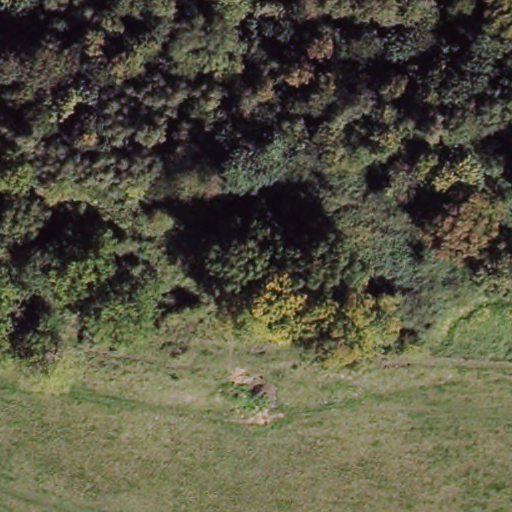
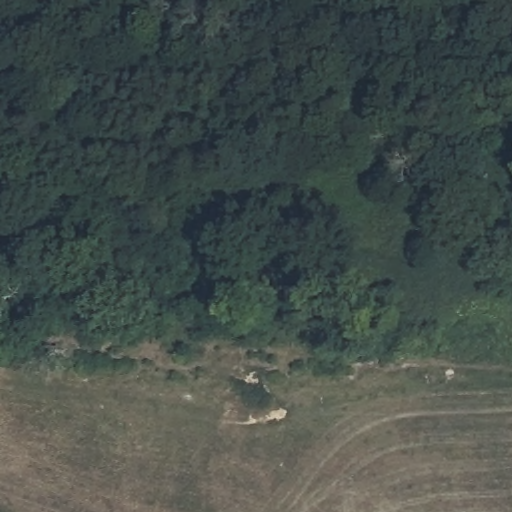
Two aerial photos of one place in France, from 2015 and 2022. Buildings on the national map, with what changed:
[]

